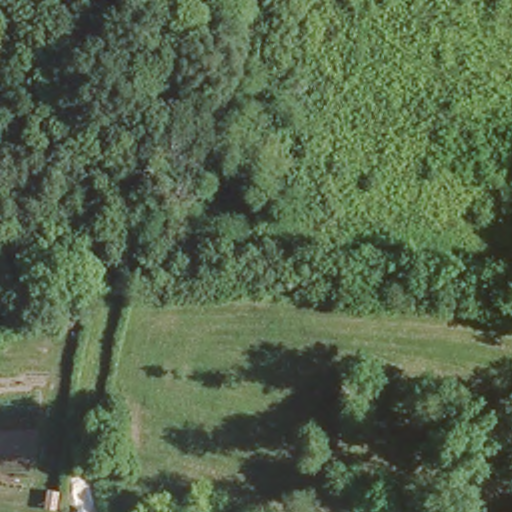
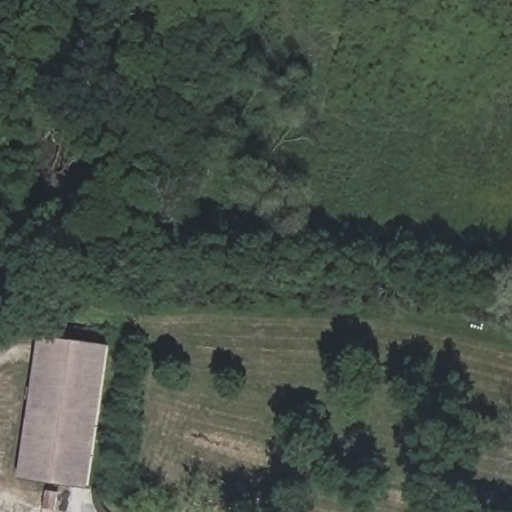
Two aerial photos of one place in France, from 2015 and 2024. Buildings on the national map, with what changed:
new [(110,345),(89,488),(19,477),(40,335),(110,345)]

